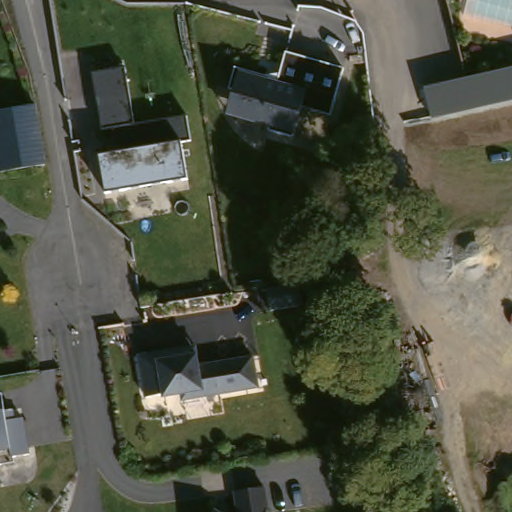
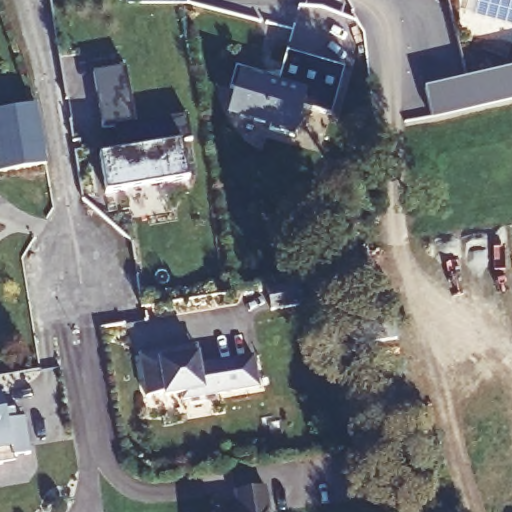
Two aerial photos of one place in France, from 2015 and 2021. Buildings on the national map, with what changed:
unchanged [(239,94),(233,93),(237,79),(239,71),(268,79),(274,80),(273,84),(281,86),(286,67),(289,55),(347,71),(334,119),(306,111),(298,140),(273,134),(274,129),(258,124),(244,121),(233,118),(239,94)]
unchanged [(128,64),(136,123),(190,115),(193,138),(183,140),(189,179),(106,192),(101,153),(119,150),(114,126),(104,127),(95,69),(128,64)]
unchanged [(432,121),(425,91),(512,72),(512,103),(432,121)]
unchanged [(0,173),(0,116),(31,111),(41,166),(0,173)]
unchanged [(305,280),(309,302),(277,308),(273,285),(305,280)]
unchanged [(255,360),(260,391),(185,403),(184,397),(166,400),(166,398),(149,401),(141,359),(179,353),(198,349),(199,358),(201,369),(255,360)]
unchanged [(15,409),(16,419),(25,417),(31,454),(15,456),(16,461),(0,464),(0,393),(4,392),(7,410),(15,409)]
unchanged [(244,494),(274,488),(278,512),(248,512),(244,494)]

